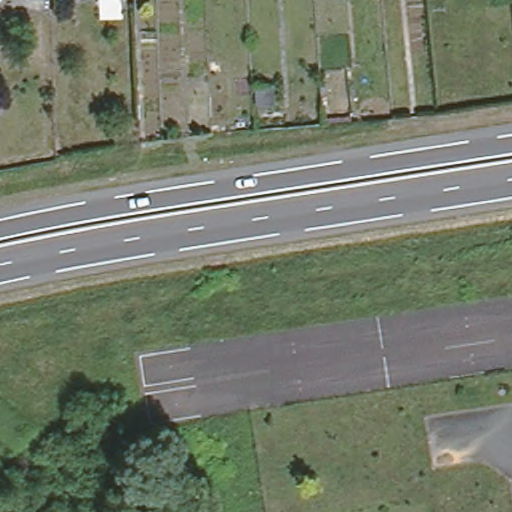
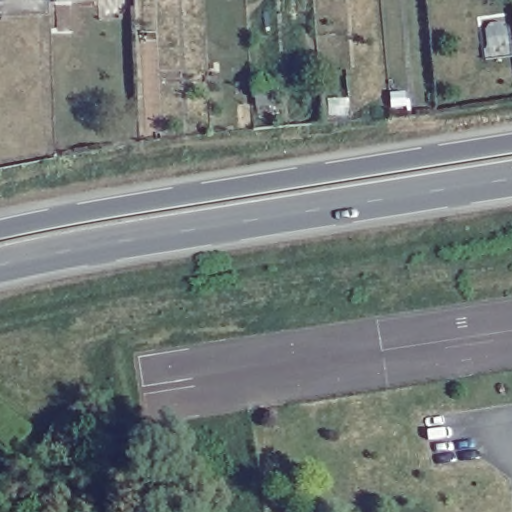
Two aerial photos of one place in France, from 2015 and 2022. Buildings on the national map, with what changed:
[]

